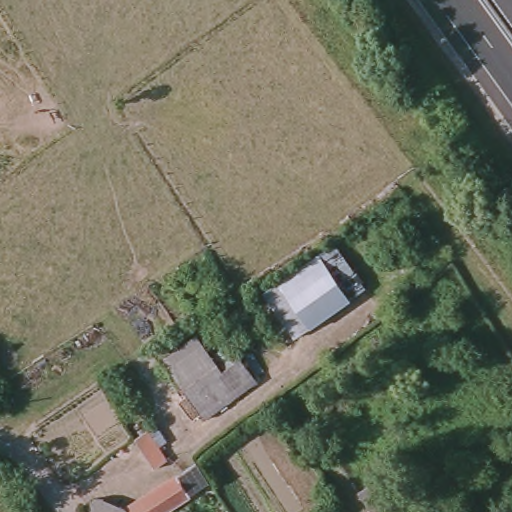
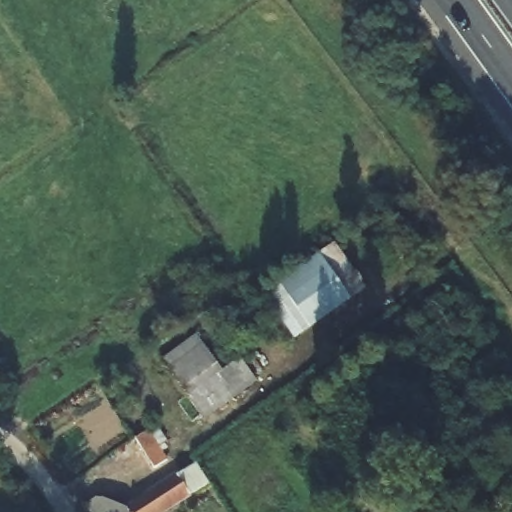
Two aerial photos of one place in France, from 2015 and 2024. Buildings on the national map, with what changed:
unchanged [(333,245),(363,293),(280,346),(253,297),(333,245)]
unchanged [(192,334),(220,369),(237,355),(255,381),(202,422),(182,397),(157,364),(192,334)]
unchanged [(160,411),(180,439),(168,449),(148,421),(160,411)]
unchanged [(206,484),(165,512),(126,512),(193,464),(206,484)]
unchanged [(85,509),(95,502),(120,512),(88,512),(85,509)]

